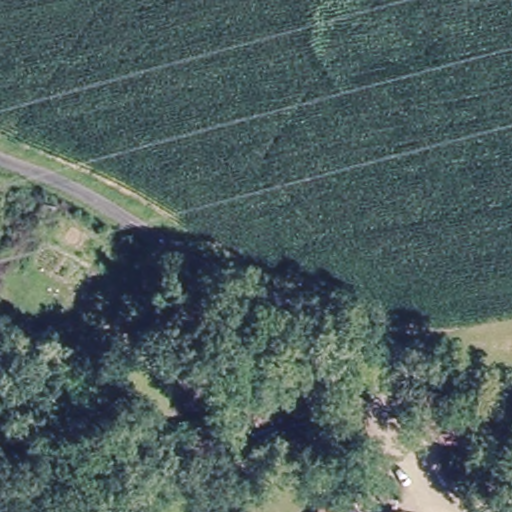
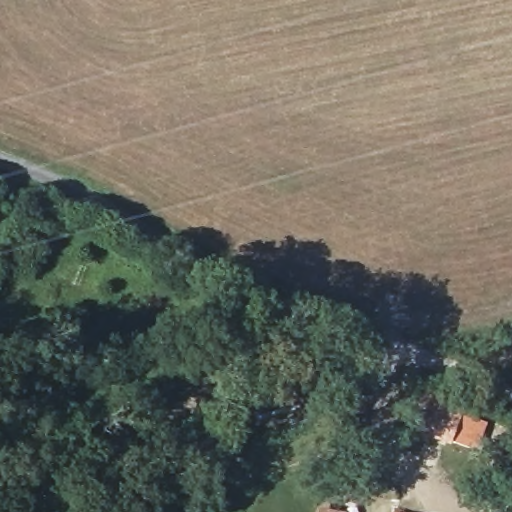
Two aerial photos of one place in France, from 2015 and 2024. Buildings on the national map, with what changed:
unchanged [(472,453),(406,428),(424,383),(467,396),(462,412),(485,420),(472,453)]
unchanged [(341,505),(340,512),(317,512),(318,502),(341,505)]
unchanged [(391,510),(406,512),(390,512),(391,510)]

